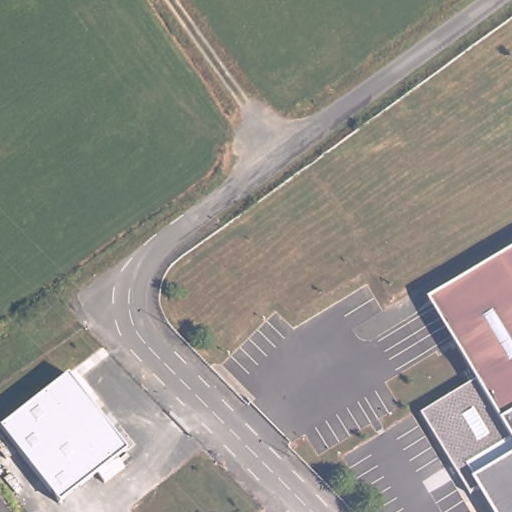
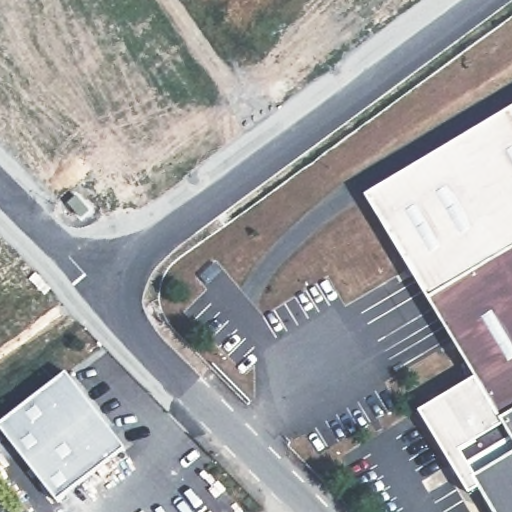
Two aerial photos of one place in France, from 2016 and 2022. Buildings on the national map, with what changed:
new [(364,197),(512,108),(512,249),(427,300),(364,197)]
unchanged [(512,431),(512,456),(477,477),(464,487),(419,412),(473,379),(427,300),(512,249),(512,414),(505,418),(512,431)]
unchanged [(0,431),(0,426),(67,373),(125,448),(56,503),(0,431)]
unchanged [(512,414),(512,431),(505,418),(512,414)]
unchanged [(512,456),(512,512),(498,512),(477,477),(512,456)]

